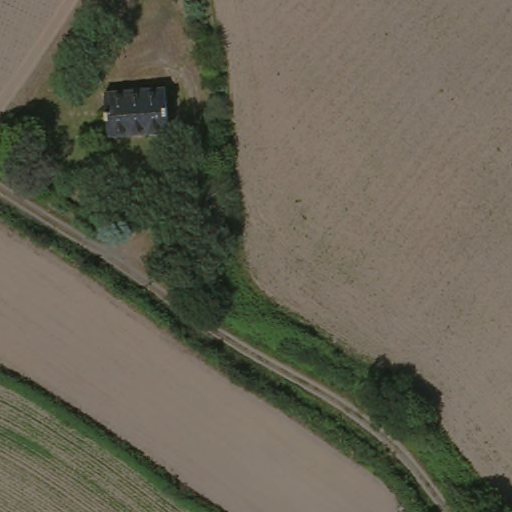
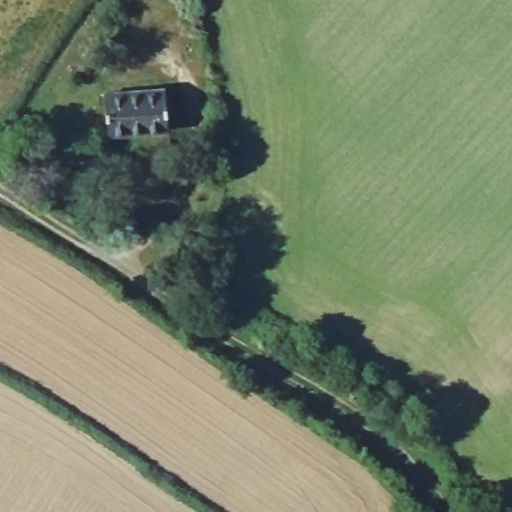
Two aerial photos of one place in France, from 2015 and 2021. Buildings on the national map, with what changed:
unchanged [(165,135),(104,130),(107,86),(169,91),(165,135)]

